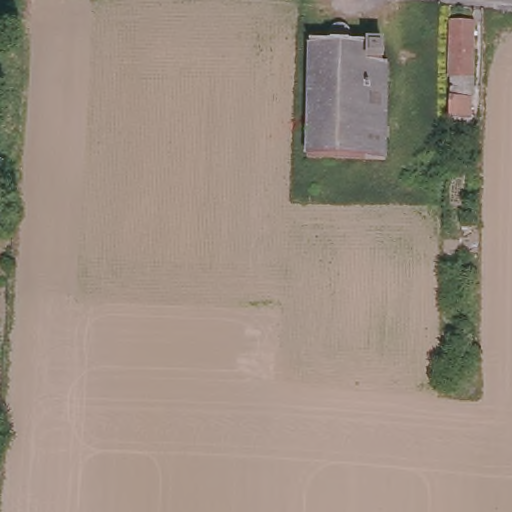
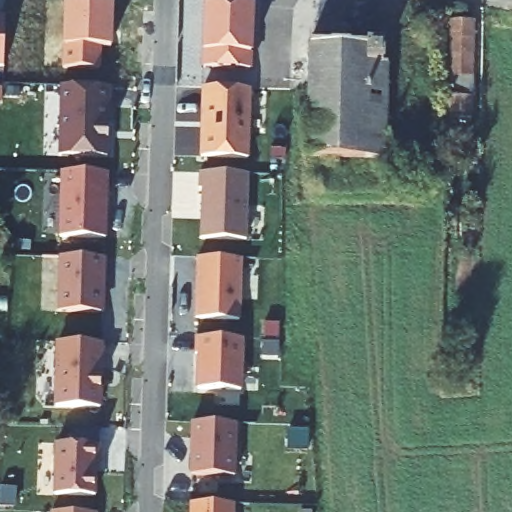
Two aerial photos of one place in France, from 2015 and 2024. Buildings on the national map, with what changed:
new [(63,69),(64,2),(111,4),(110,48),(99,48),(98,70),(63,69)]
new [(204,3),(254,5),(251,71),(202,69),(204,3)]
unchanged [(469,83),(467,83),(467,118),(446,116),(444,6),(469,6),(469,83)]
new [(3,67),(0,67),(0,16),(5,16),(3,67)]
unchanged [(309,42),(330,43),(331,33),(348,33),(348,44),(381,44),(381,63),(384,63),(382,158),(306,156),(309,42)]
new [(109,125),(108,125),(106,158),(58,156),(60,86),(110,88),(109,125)]
new [(249,89),(248,158),(201,157),(203,87),(249,89)]
new [(104,239),(59,237),(62,172),(107,173),(104,239)]
new [(248,174),(246,240),(201,238),(203,189),(199,188),(200,172),(248,174)]
new [(59,257),(105,258),(104,276),(101,276),(101,292),(100,313),(58,312),(58,291),(59,257)]
new [(241,258),(240,296),(197,295),(198,257),(241,258)]
new [(240,296),(239,319),(196,318),(197,295),(240,296)]
new [(242,339),(240,391),(198,390),(198,354),(196,354),(196,338),(242,339)]
new [(101,376),(100,376),(99,409),(56,407),(58,342),(101,344),(101,376)]
new [(236,424),(234,477),(191,476),(191,450),(194,450),(195,439),(192,439),(193,423),(236,424)]
new [(54,495),(56,444),(99,445),(98,463),(95,463),(94,497),(54,495)]
new [(234,504),(234,512),(190,512),(191,503),(234,504)]

